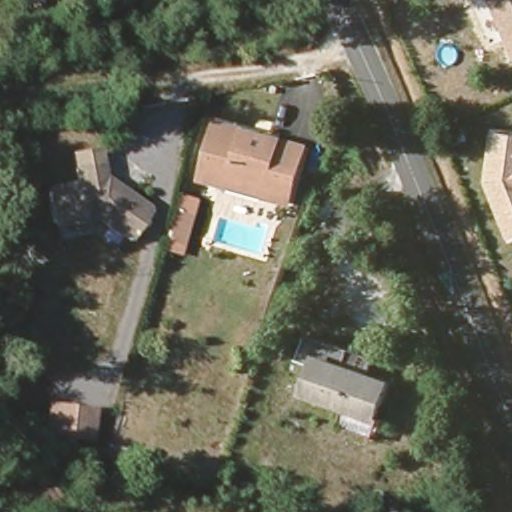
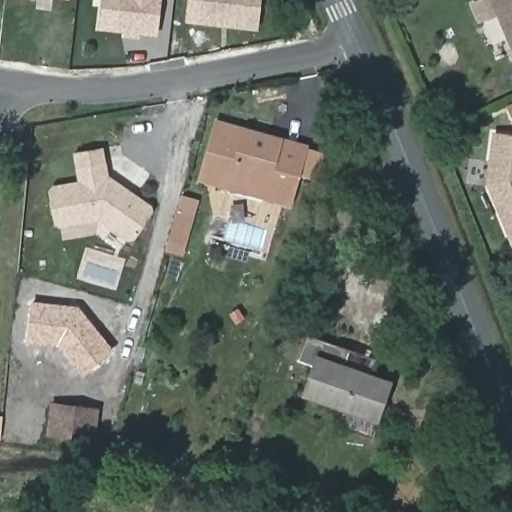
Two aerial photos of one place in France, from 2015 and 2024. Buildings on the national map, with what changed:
new [(102,30),(106,0),(161,0),(157,36),(102,30)]
new [(258,31),(188,23),(191,0),(262,0),(258,31)]
unchanged [(492,0),(512,0),(512,48),(492,0)]
unchanged [(288,203),(262,194),(266,185),(232,174),(229,183),(201,174),(219,118),(307,148),(288,203)]
unchanged [(506,233),(485,178),(492,131),(512,135),(512,231),(506,233)]
unchanged [(155,210),(137,236),(132,237),(116,226),(104,216),(64,225),(60,222),(54,191),(56,187),(80,182),(77,167),(74,152),(102,146),(106,161),(109,176),(110,176),(133,191),(154,206),(155,210)]
unchanged [(185,243),(171,238),(180,210),(194,214),(185,243)]
new [(82,377),(57,346),(27,343),(31,301),(78,307),(114,350),(82,377)]
unchanged [(367,435),(366,434),(337,423),(297,406),(308,379),(291,372),(302,346),(345,364),(368,374),(361,392),(381,401),(367,435)]
unchanged [(92,441),(46,436),(50,400),(96,409),(92,441)]

